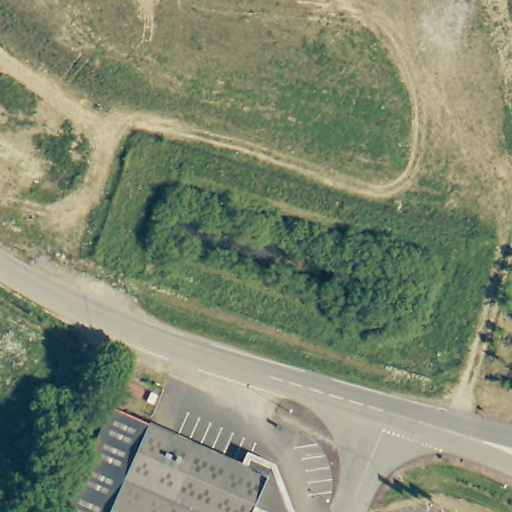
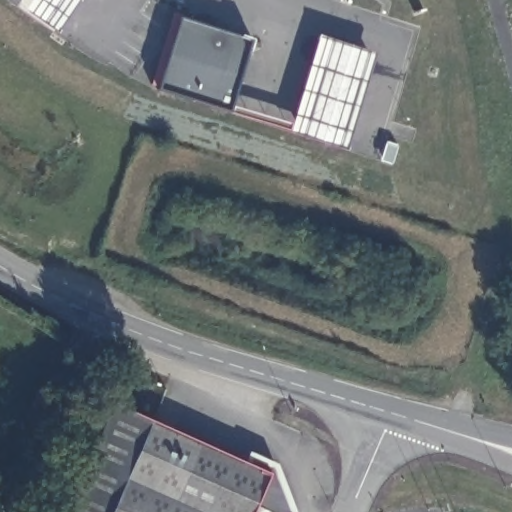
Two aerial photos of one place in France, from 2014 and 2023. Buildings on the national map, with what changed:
new [(31,0),(78,0),(55,33),(24,11),(31,0)]
new [(148,87),(170,16),(181,20),(252,40),(228,113),(155,91),(148,87)]
new [(288,134),(317,35),(374,53),(344,149),(288,134)]
unchanged [(82,493),(118,408),(253,466),(257,456),(281,466),(300,511),(299,512),(277,512),(264,507),(261,512),(74,512),(82,493)]

